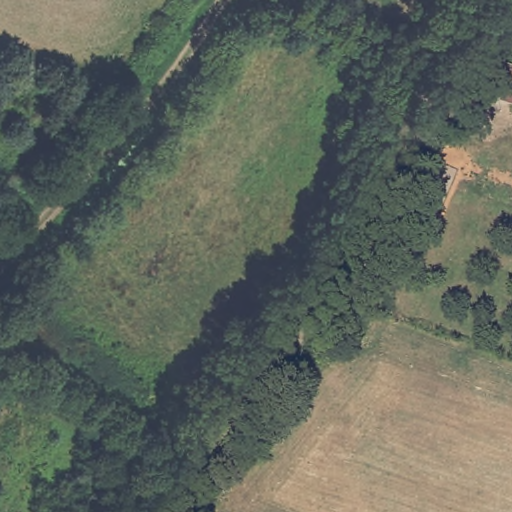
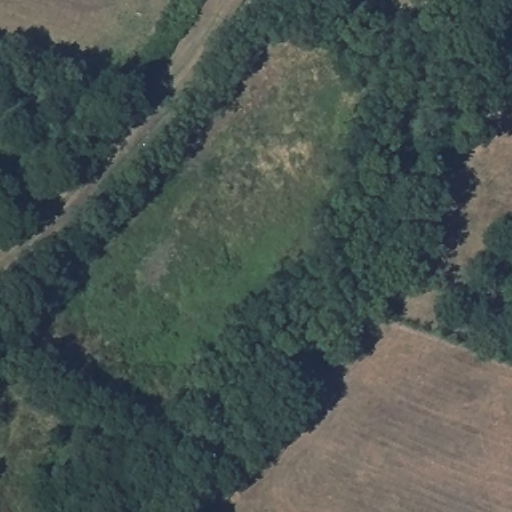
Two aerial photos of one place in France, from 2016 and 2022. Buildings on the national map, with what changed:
unchanged [(512,72),(512,104),(487,95),(497,66),(512,72)]
unchanged [(458,171),(430,235),(412,229),(441,164),(458,171)]

